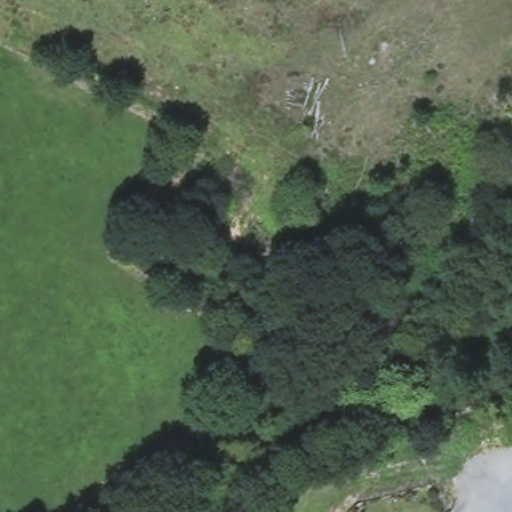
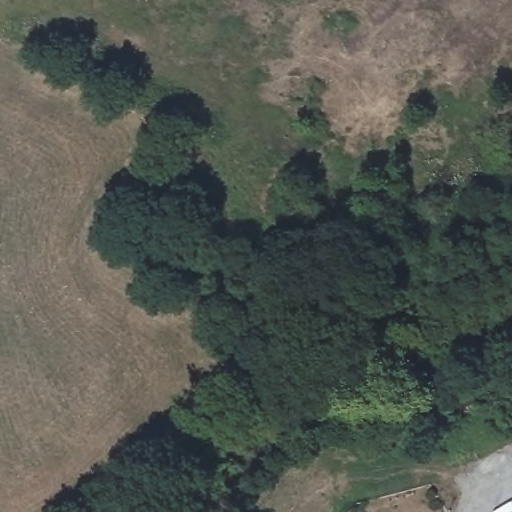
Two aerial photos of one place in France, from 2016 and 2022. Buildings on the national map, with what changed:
unchanged [(317,197),(311,211),(290,203),(296,188),(317,197)]

